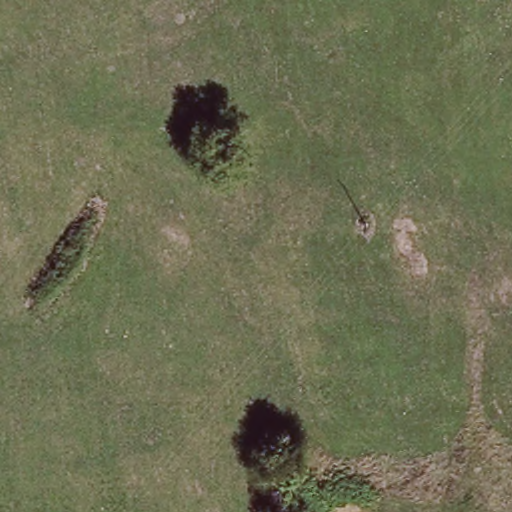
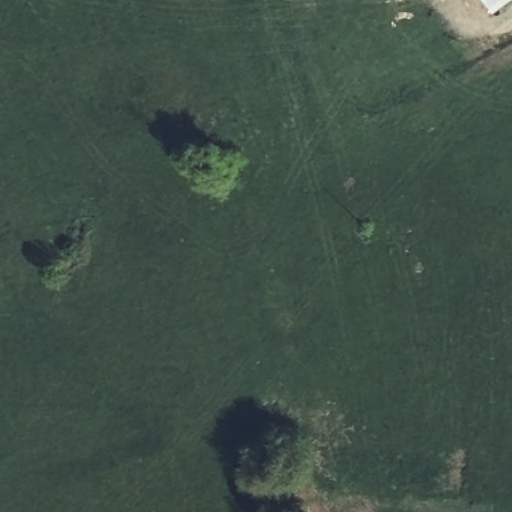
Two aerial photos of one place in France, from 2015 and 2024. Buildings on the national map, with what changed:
new [(494,12),(485,0),(512,0),(494,12)]

